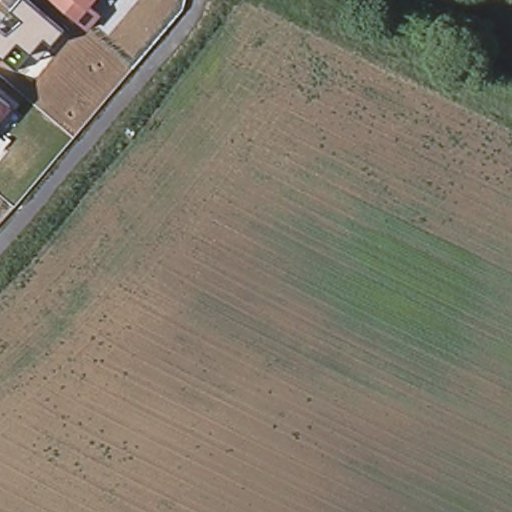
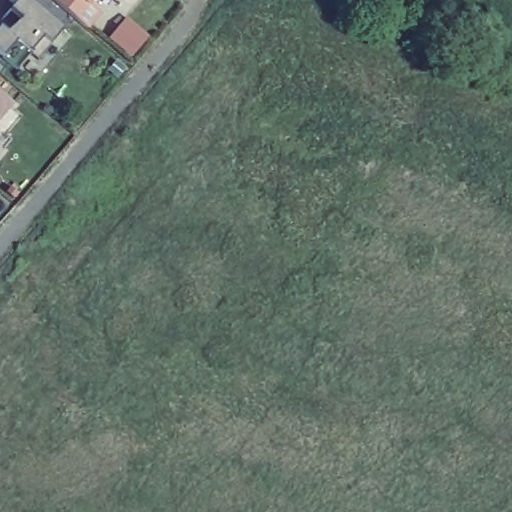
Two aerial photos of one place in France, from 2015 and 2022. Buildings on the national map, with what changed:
unchanged [(52,43),(43,37),(31,53),(16,42),(5,57),(0,54),(0,28),(2,26),(8,31),(23,20),(10,9),(17,0),(29,0),(62,28),(52,43)]
unchanged [(101,12),(89,29),(53,0),(96,0),(91,6),(101,12)]
unchanged [(0,127),(0,96),(15,107),(0,127)]

